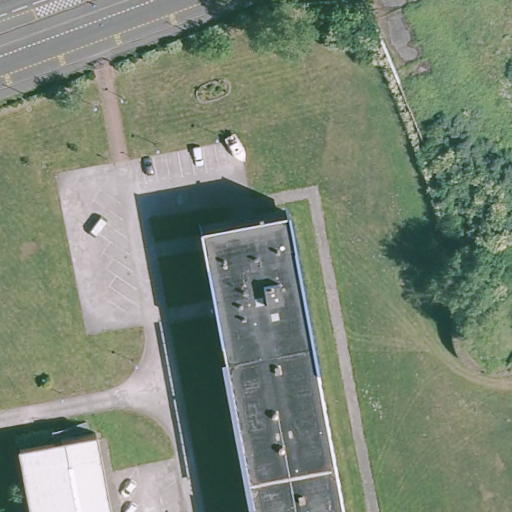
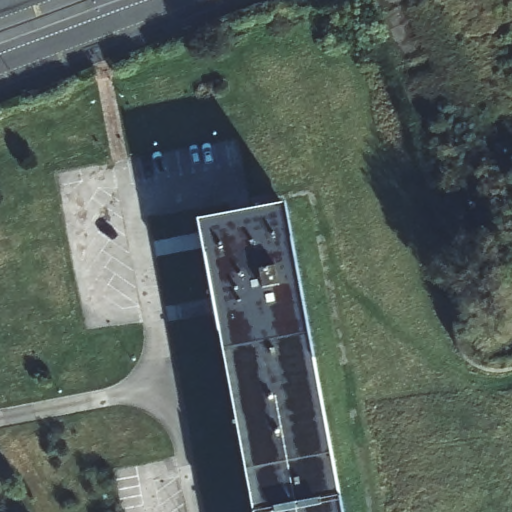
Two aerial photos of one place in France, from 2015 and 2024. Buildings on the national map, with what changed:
unchanged [(342,512),(251,512),(197,229),(285,213),(342,512)]
demolished [(111,512),(69,512),(25,445),(96,430),(111,512)]
demolished [(17,446),(25,445),(69,512),(29,512),(27,496),(17,446)]

